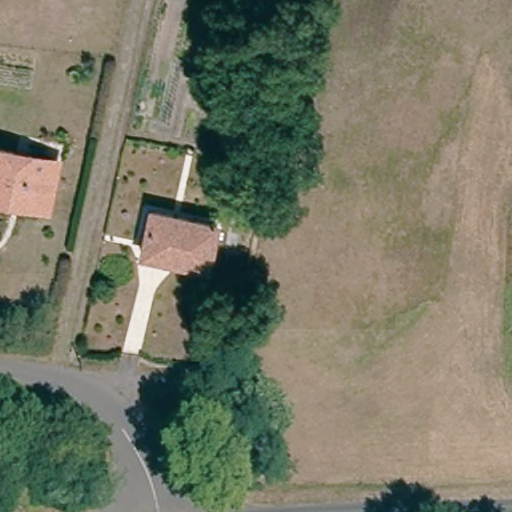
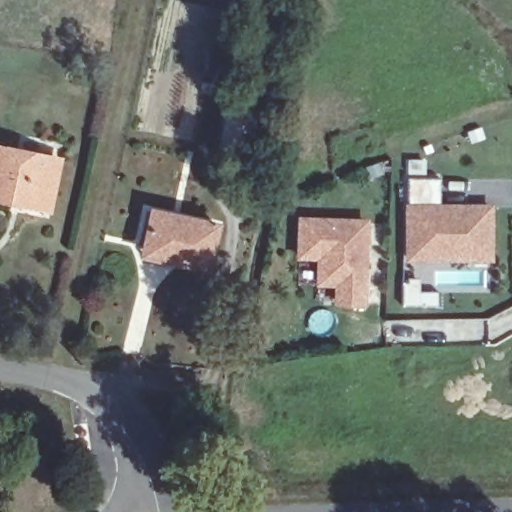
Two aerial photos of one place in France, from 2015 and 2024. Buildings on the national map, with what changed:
unchanged [(235,111),(263,117),(249,177),(221,171),(235,111)]
unchanged [(39,210),(0,200),(0,150),(50,160),(39,210)]
new [(439,180),(439,204),(494,204),(493,262),(406,262),(407,179),(439,180)]
unchanged [(142,245),(151,207),(216,226),(202,274),(167,265),(139,256),(142,245)]
new [(324,267),(303,267),(304,230),(370,232),(369,255),(369,260),(367,313),(341,312),(342,294),(323,293),(323,278),(324,267)]

